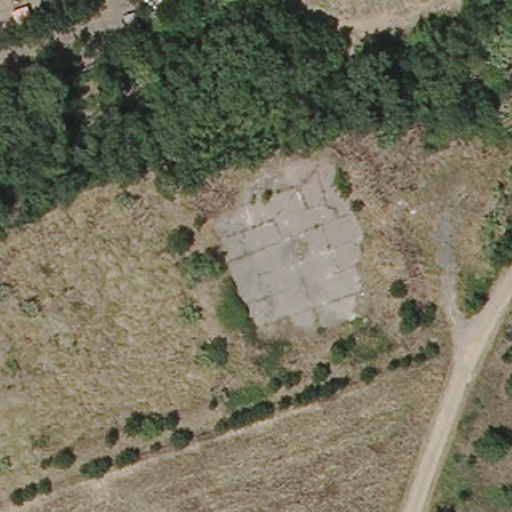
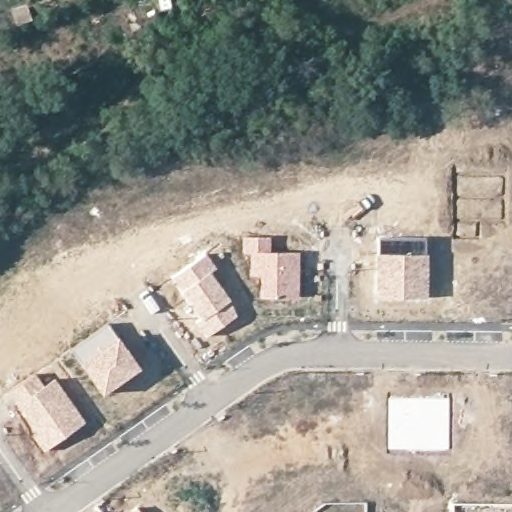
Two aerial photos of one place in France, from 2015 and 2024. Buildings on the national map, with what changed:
new [(504,170),(505,220),(477,219),(477,237),(455,236),(455,170),(504,170)]
new [(243,235),(271,236),(270,250),(299,251),(299,297),(259,297),(260,275),(251,275),(252,252),(242,252),(243,235)]
new [(424,238),(424,253),(427,254),(427,298),(374,296),(375,253),(377,254),(378,237),(424,238)]
new [(206,254),(216,268),(211,271),(238,315),(208,335),(172,278),(206,254)]
new [(107,323),(140,368),(102,395),(70,348),(107,323)]
new [(34,372),(43,385),(54,377),(85,422),(45,452),(6,392),(34,372)]
new [(448,396),(449,447),(387,448),(387,396),(448,396)]
new [(141,512),(128,512),(137,506),(141,512)]

